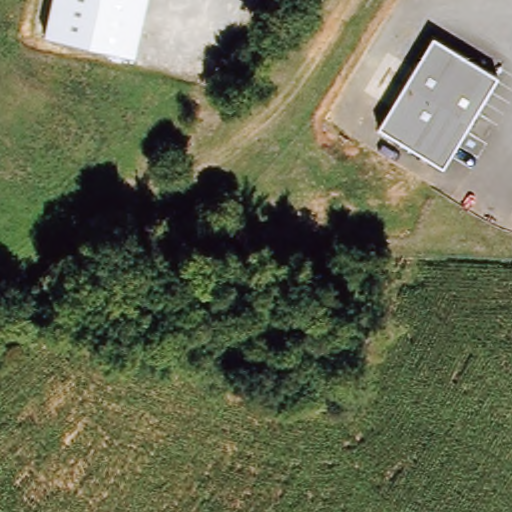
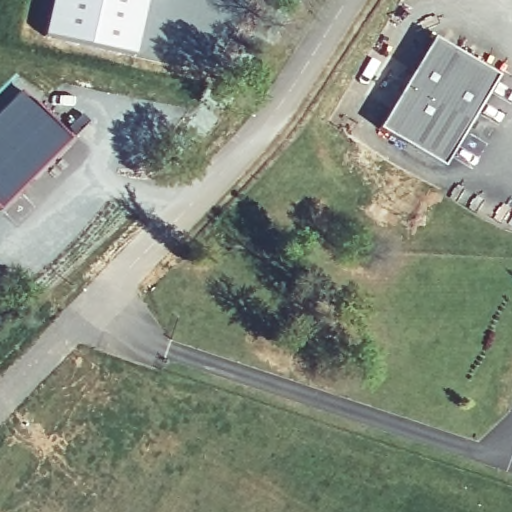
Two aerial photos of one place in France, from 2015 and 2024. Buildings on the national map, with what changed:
unchanged [(135,51),(44,33),(51,0),(145,0),(135,51)]
unchanged [(499,76),(444,165),(380,125),(435,34),(499,76)]
new [(0,208),(0,112),(22,90),(71,138),(0,208)]

